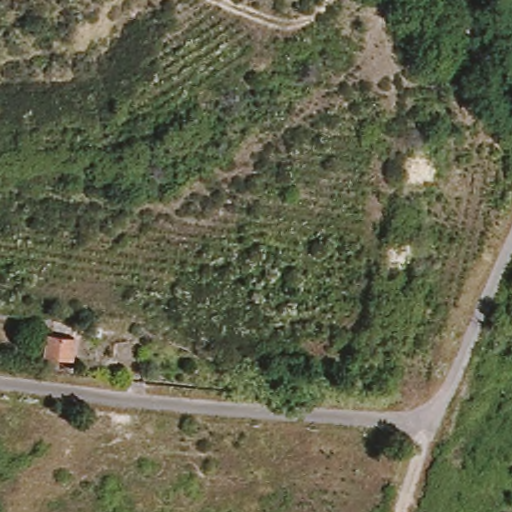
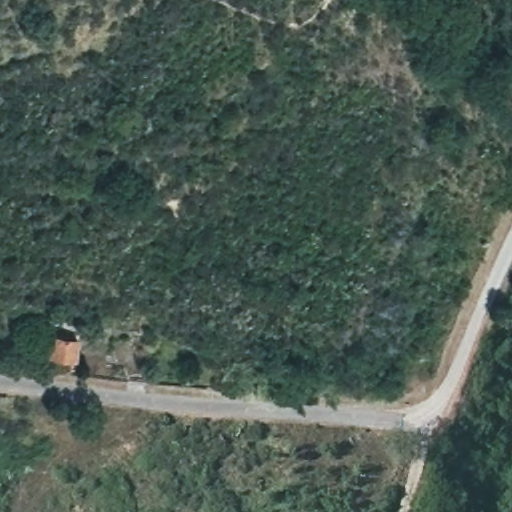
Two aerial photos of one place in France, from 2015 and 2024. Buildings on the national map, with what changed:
unchanged [(72,360),(47,358),(47,326),(73,330),(72,360)]

